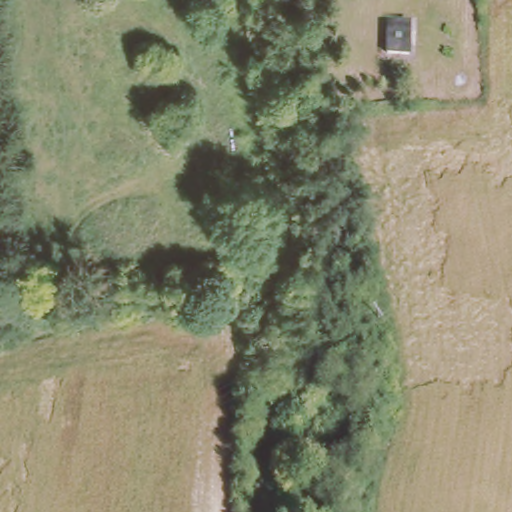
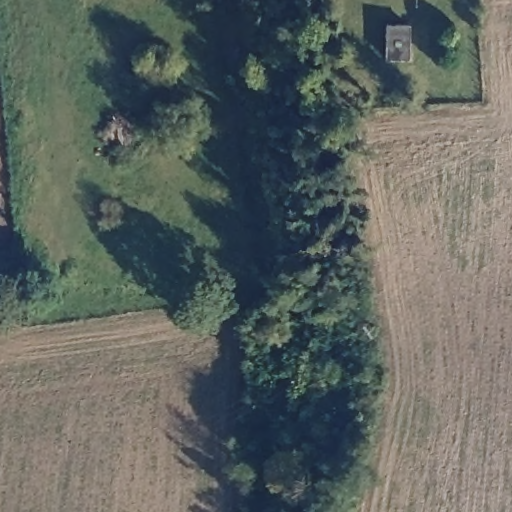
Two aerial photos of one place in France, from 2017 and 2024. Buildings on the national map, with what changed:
unchanged [(388,21),(410,21),(412,53),(387,54),(388,21)]

